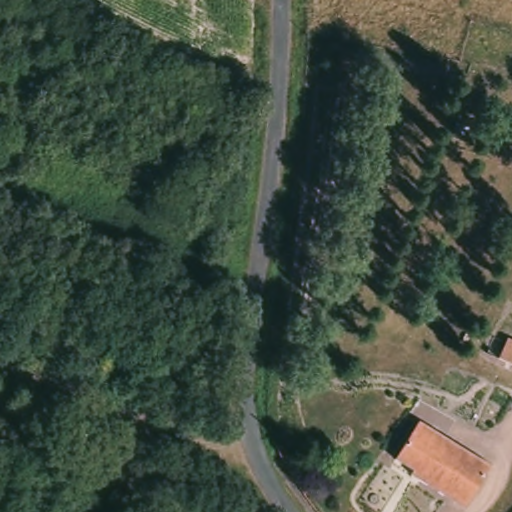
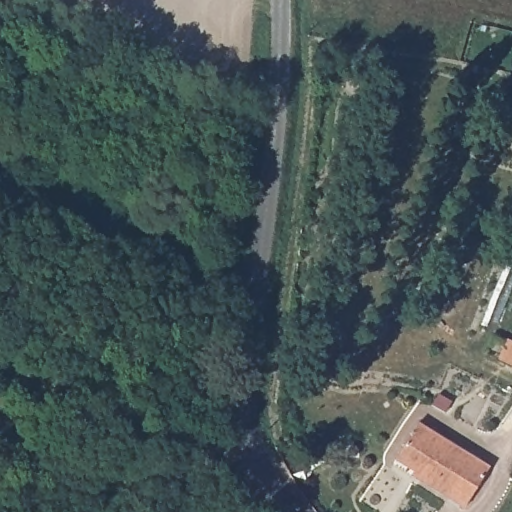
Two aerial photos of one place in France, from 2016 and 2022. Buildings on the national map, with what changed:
unchanged [(500,360),(510,339),(512,340),(512,365),(500,360)]
unchanged [(494,472),(469,510),(416,477),(420,471),(398,458),(418,425),(494,472)]

